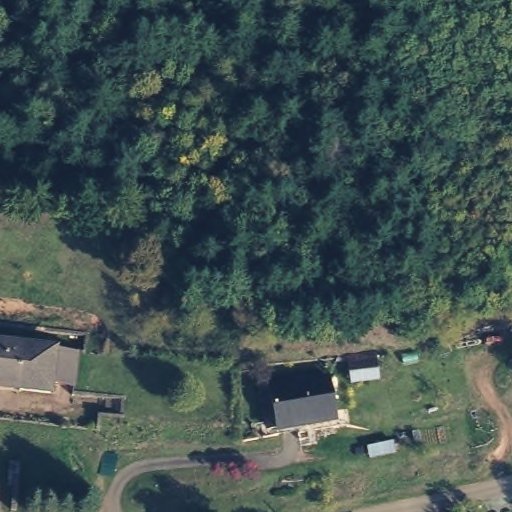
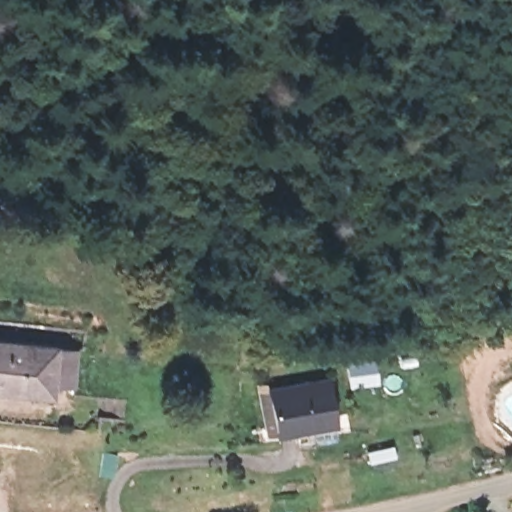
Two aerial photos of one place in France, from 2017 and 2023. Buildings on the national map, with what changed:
unchanged [(73,383),(50,380),(49,389),(0,383),(0,338),(77,347),(73,383)]
unchanged [(273,430),(269,384),(326,373),(334,418),(273,430)]

